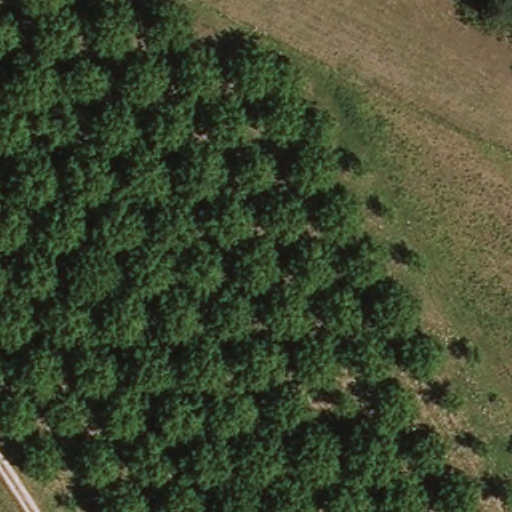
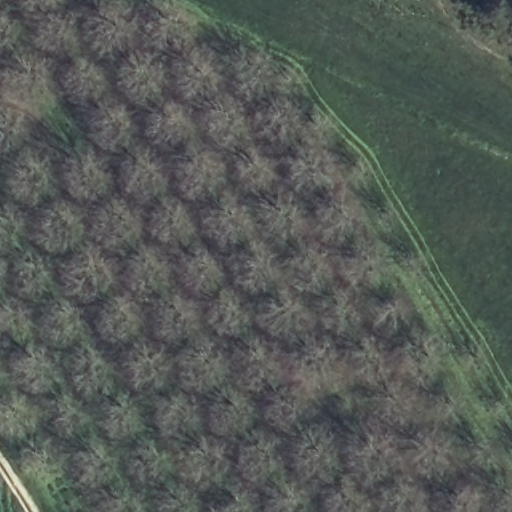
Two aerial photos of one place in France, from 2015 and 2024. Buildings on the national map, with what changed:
[]

